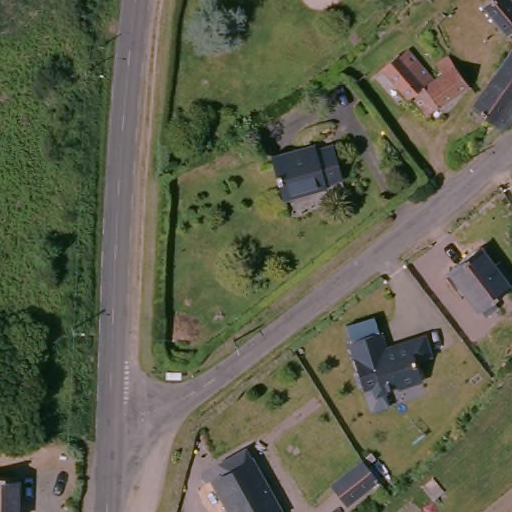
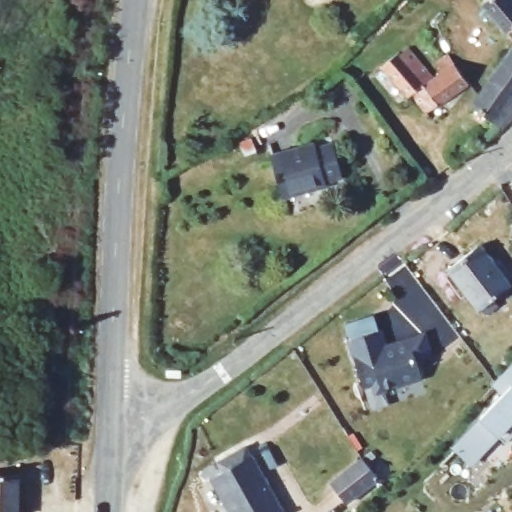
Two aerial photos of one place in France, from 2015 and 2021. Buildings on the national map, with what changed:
unchanged [(468,115),(508,55),(476,14),(493,0),(498,0),(508,13),(512,10),(512,129),(503,139),(468,115)]
unchanged [(446,60),(466,88),(423,119),(410,102),(404,105),(379,72),(400,57),(424,87),(438,76),(434,69),(446,60)]
unchanged [(339,181),(324,186),(325,190),(323,191),(281,202),(271,165),(315,153),(316,157),(331,153),(339,181)]
unchanged [(509,285),(490,299),(498,309),(484,318),(478,310),(476,311),(466,297),(459,301),(444,280),(451,275),(448,270),(479,248),(493,267),(499,263),(511,278),(506,281),(509,285)]
unchanged [(378,323),(383,341),(424,328),(431,346),(416,350),(423,371),(399,378),(398,376),(379,382),(377,375),(365,378),(350,332),(378,323)]
new [(512,439),(506,445),(499,437),(471,466),(453,448),(512,388),(512,439)]
unchanged [(272,512),(222,512),(208,485),(218,480),(211,468),(240,452),(272,512)]
unchanged [(365,462),(371,469),(363,476),(373,490),(344,512),(338,512),(324,495),(357,468),(365,462)]
unchanged [(18,480),(16,512),(0,512),(0,480),(18,480)]

